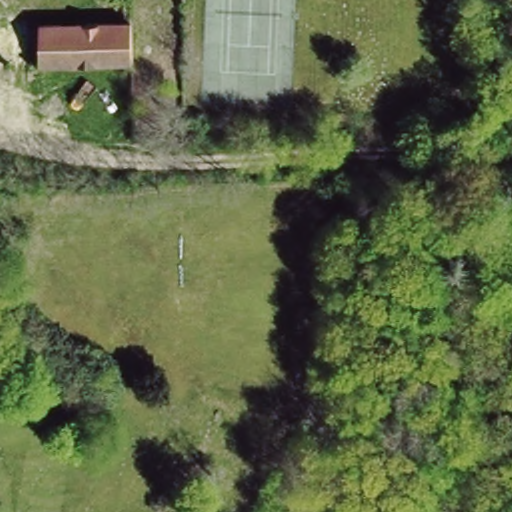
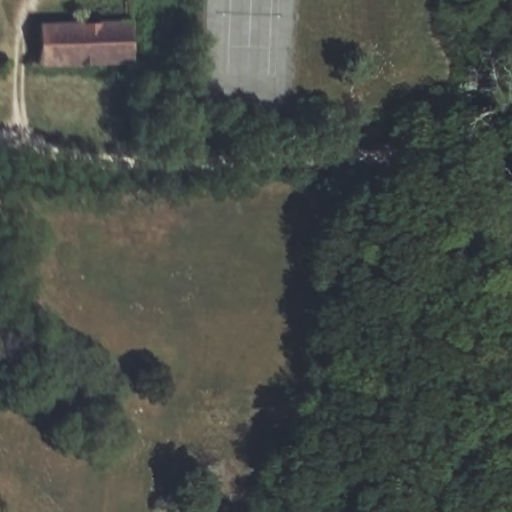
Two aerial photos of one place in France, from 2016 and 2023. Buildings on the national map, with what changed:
unchanged [(132,64),(37,65),(37,15),(130,14),(132,64)]

